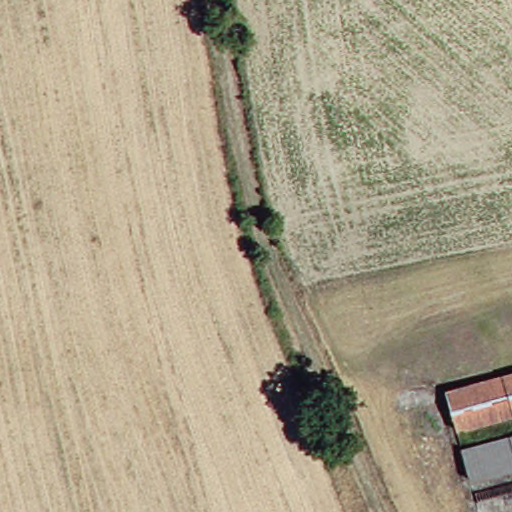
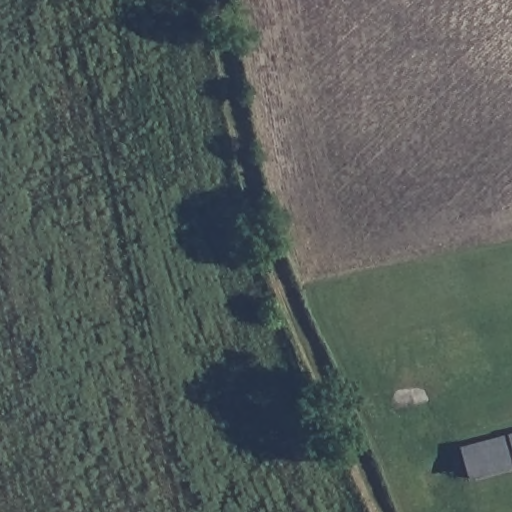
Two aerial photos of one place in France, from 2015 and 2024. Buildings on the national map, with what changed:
demolished [(441,394),(512,374),(512,414),(450,431),(441,394)]
unchanged [(512,467),(465,480),(456,447),(512,432),(512,467)]

